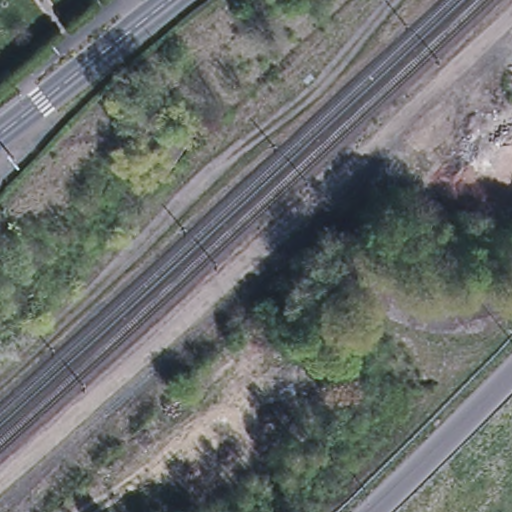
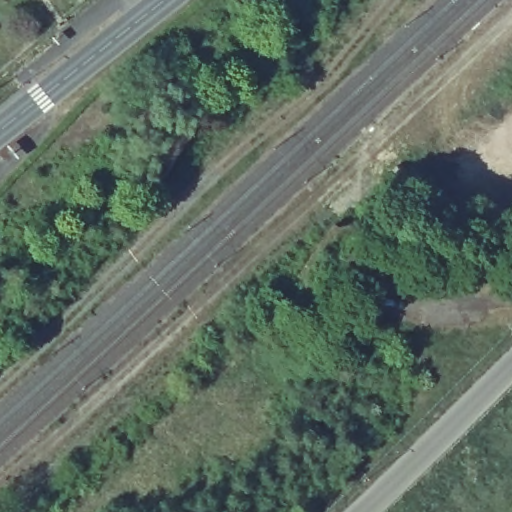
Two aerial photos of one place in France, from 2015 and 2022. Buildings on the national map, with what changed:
[]

